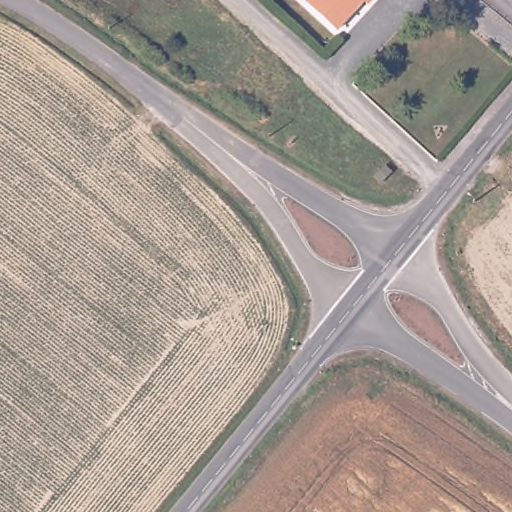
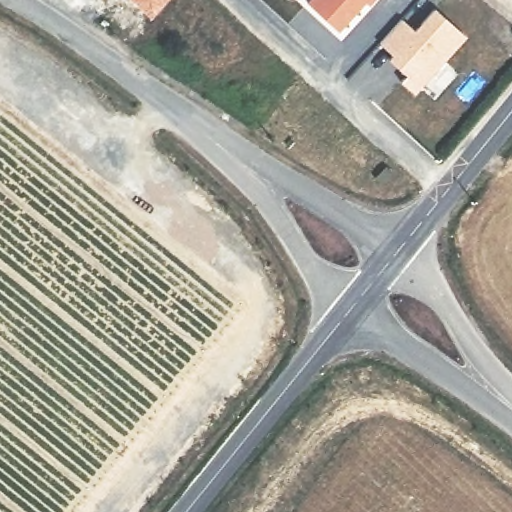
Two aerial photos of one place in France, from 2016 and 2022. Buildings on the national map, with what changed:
new [(139,0),(175,0),(161,18),(139,0)]
unchanged [(308,4),(312,0),(363,0),(337,31),(308,4)]
unchanged [(364,0),(373,0),(369,4),(364,0)]
new [(404,20),(417,32),(437,10),(468,39),(417,95),(404,83),(409,76),(391,60),(395,56),(382,44),(404,20)]

